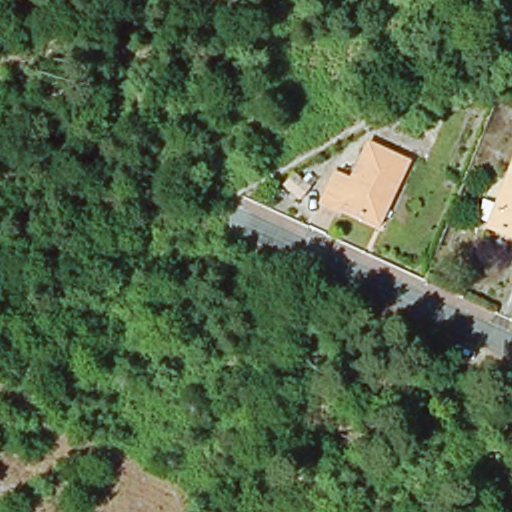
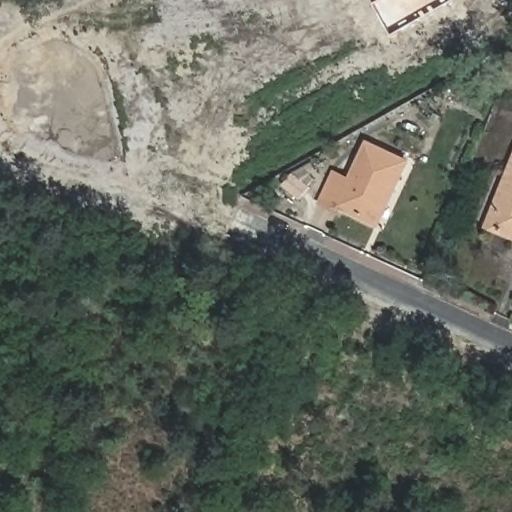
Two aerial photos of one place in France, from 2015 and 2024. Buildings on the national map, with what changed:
new [(392,34),(374,4),(381,0),(454,0),(392,34)]
unchanged [(501,82),(511,52),(512,53),(512,86),(501,82)]
unchanged [(381,224),(343,206),(341,210),(323,202),(337,172),(353,179),(371,142),(411,160),(381,224)]
unchanged [(490,225),(512,170),(512,234),(490,225)]

